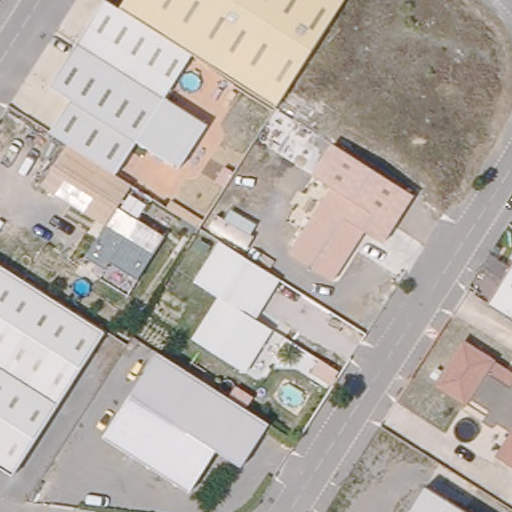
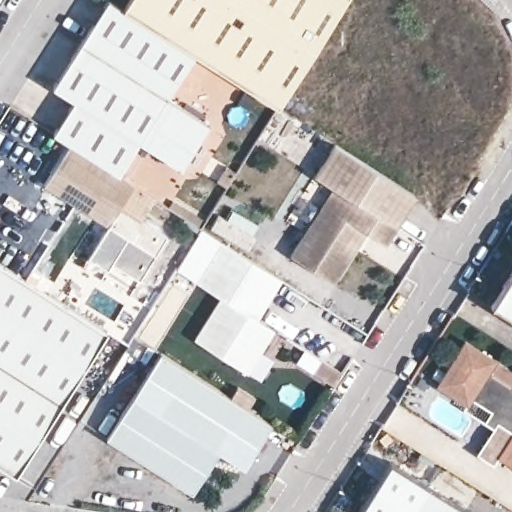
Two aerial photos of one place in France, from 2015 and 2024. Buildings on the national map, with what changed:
unchanged [(122,9),(193,54),(166,97),(208,124),(180,168),(138,141),(116,174),(103,165),(70,144),(51,133),(72,100),(51,86),(106,0),(109,0),(121,8),(122,9)]
unchanged [(346,0),(278,108),(193,54),(122,9),(127,0),(346,0)]
unchanged [(380,240),(361,228),(329,279),(286,252),(329,185),(310,173),(331,141),(399,185),(411,192),(380,240)]
unchanged [(103,165),(116,174),(133,185),(120,207),(167,236),(139,280),(111,262),(107,270),(77,251),(97,219),(43,185),(70,144),(103,165)]
unchanged [(274,325),(246,368),(194,334),(221,292),(196,277),(222,237),(222,236),(273,269),(281,274),(262,304),(256,313),(274,325)]
unchanged [(15,472),(0,462),(0,263),(103,329),(15,472)]
unchanged [(489,304),(512,268),(512,319),(489,304)]
unchanged [(466,404),(436,385),(464,341),(493,361),(486,373),(510,388),(512,384),(512,467),(496,457),(493,462),(477,452),(492,428),(482,422),(489,411),(470,398),(466,404)]
unchanged [(243,466),(218,450),(191,492),(106,437),(160,353),(238,403),(270,423),(243,466)]
new [(486,372),(493,361),(512,372),(512,384),(510,388),(486,372)]
new [(386,467),(424,491),(410,512),(358,512),(386,467)]
unchanged [(424,491),(460,512),(410,512),(424,491)]

